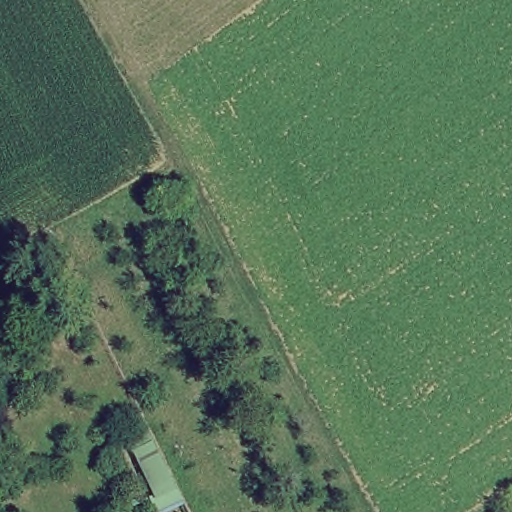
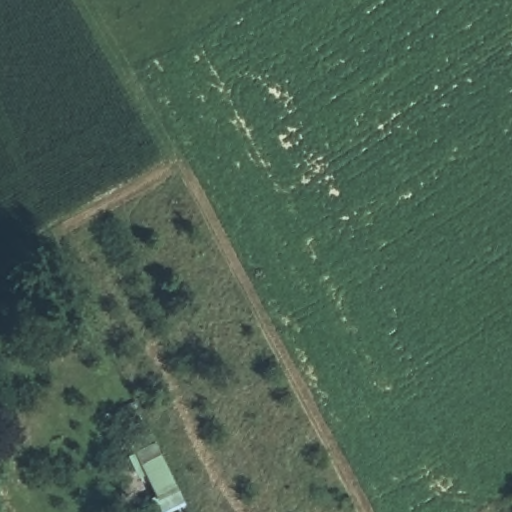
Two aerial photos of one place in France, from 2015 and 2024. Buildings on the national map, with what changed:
unchanged [(139,460),(160,452),(184,502),(160,511),(139,460)]

